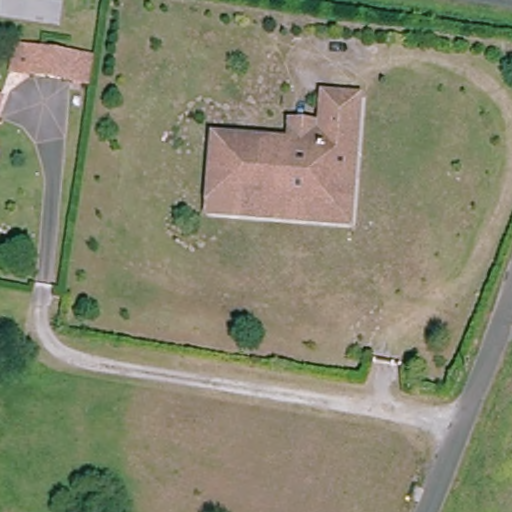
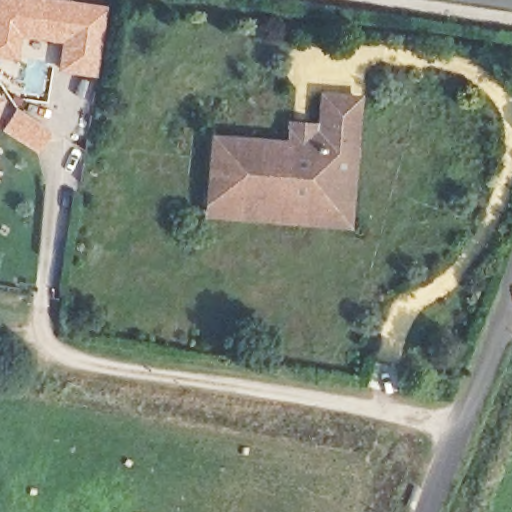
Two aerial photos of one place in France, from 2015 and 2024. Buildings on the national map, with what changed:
new [(60,42),(20,35),(15,59),(0,57),(0,0),(76,0),(106,5),(96,76),(56,71),(60,42)]
new [(9,74),(13,45),(96,56),(91,83),(9,74)]
demolished [(72,84),(36,79),(40,51),(74,57),(72,84)]
unchanged [(291,154),(292,139),(294,127),(322,130),(326,105),(362,108),(354,185),(335,182),(332,213),(217,203),(221,149),(291,154)]
unchanged [(4,109),(0,116),(0,106),(4,109)]
new [(15,107),(49,129),(35,151),(0,129),(15,107)]
unchanged [(332,213),(335,182),(354,185),(350,235),(214,220),(217,203),(332,213)]

